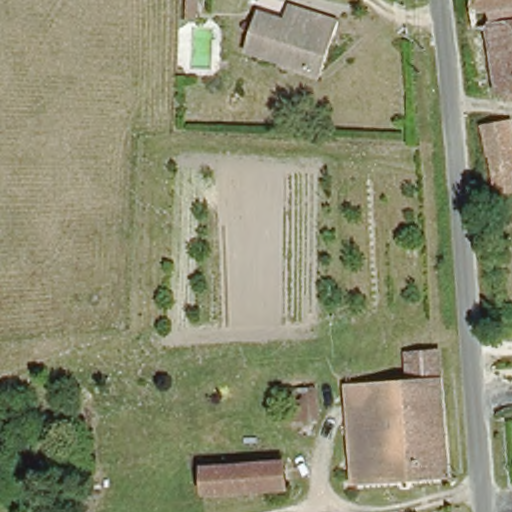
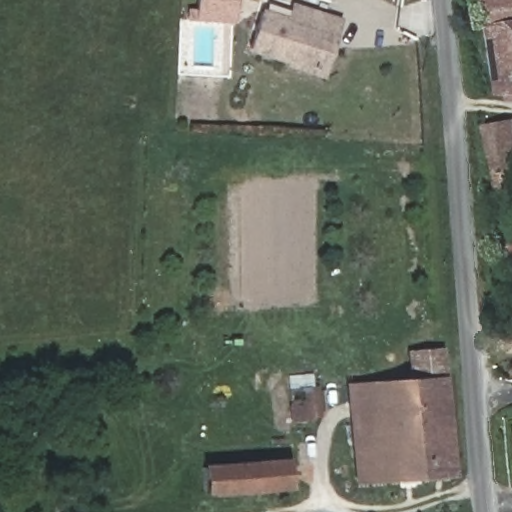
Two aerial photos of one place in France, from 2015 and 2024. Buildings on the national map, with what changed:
new [(187,10),(195,10),(195,0),(235,0),(235,23),(187,21),(187,10)]
unchanged [(248,47),(260,10),(281,16),(286,0),(291,0),(308,5),(302,24),(324,30),(312,69),(248,47)]
unchanged [(497,30),(480,30),(476,0),(512,0),(512,89),(503,90),(497,30)]
unchanged [(302,24),(308,5),(342,17),(323,72),(312,69),(324,30),(302,24)]
unchanged [(512,106),(512,206),(505,206),(491,107),(512,106)]
unchanged [(450,472),(357,478),(348,380),(409,378),(407,350),(438,349),(450,472)]
unchanged [(320,405),(292,405),(291,377),(319,376),(320,405)]
unchanged [(290,484),(205,492),(205,462),(287,456),(290,484)]

